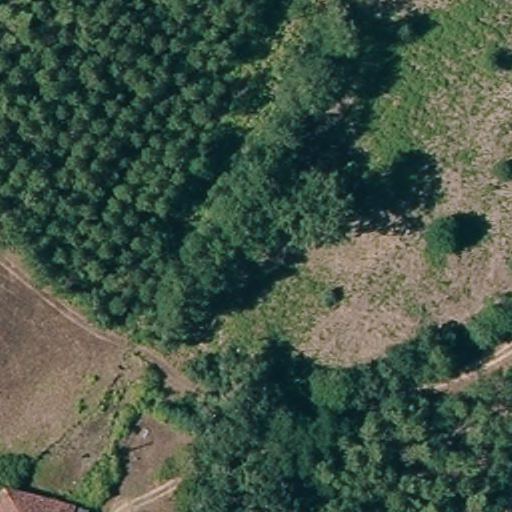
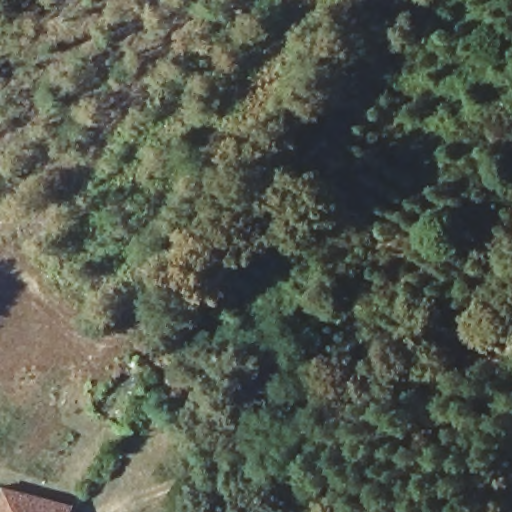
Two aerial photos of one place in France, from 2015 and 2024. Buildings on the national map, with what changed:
unchanged [(70,512),(0,512),(0,504),(3,494),(70,510),(70,512)]

